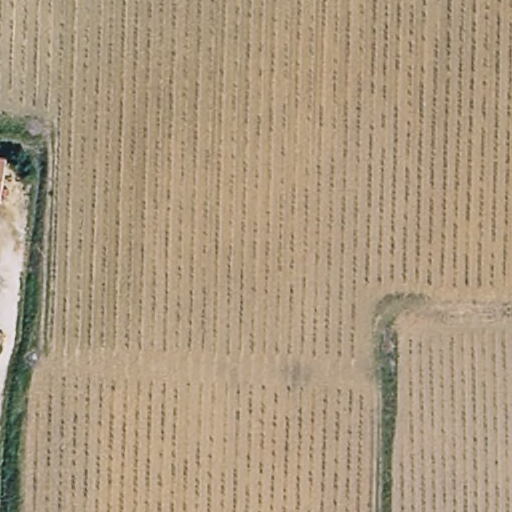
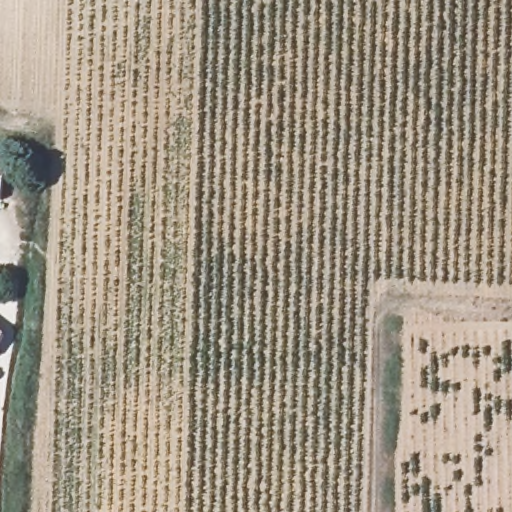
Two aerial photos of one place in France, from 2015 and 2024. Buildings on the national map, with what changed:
unchanged [(0,331),(0,316),(7,321),(0,331)]

